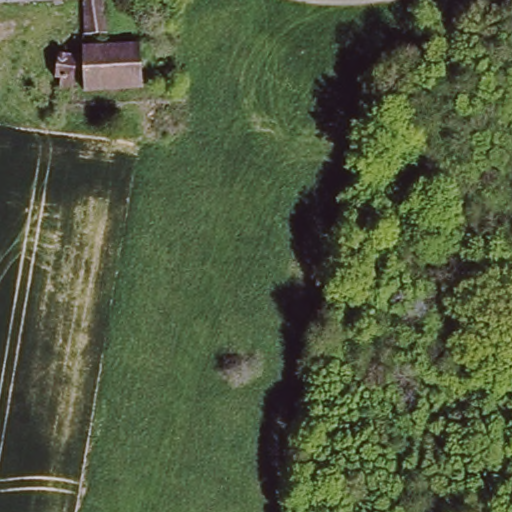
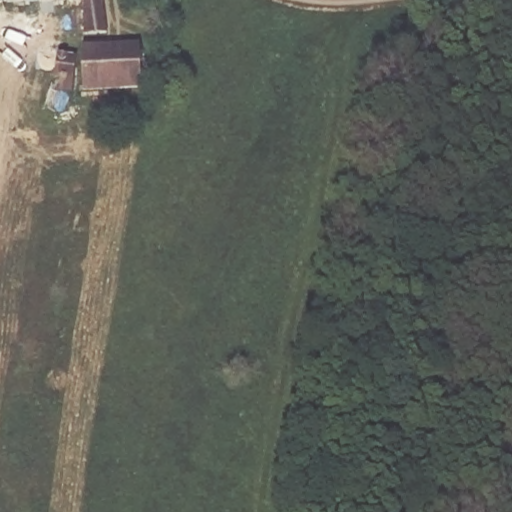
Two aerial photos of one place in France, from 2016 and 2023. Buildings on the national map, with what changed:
unchanged [(8,0),(51,0),(8,2),(8,0)]
unchanged [(102,31),(86,31),(83,0),(102,0),(106,31),(102,31)]
unchanged [(141,42),(146,86),(91,90),(86,45),(86,31),(102,31),(103,45),(141,42)]
unchanged [(82,58),(76,90),(65,89),(66,78),(58,76),(61,55),(82,58)]

